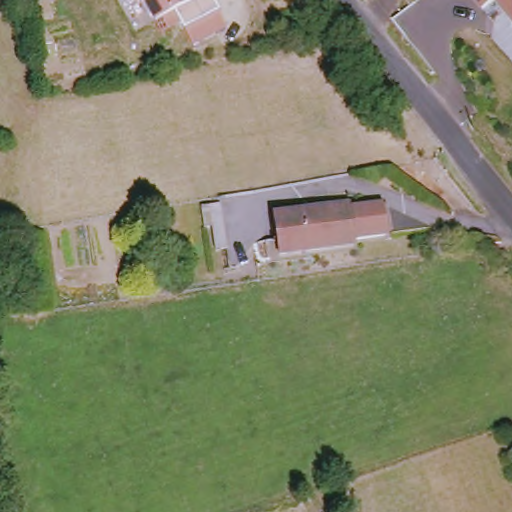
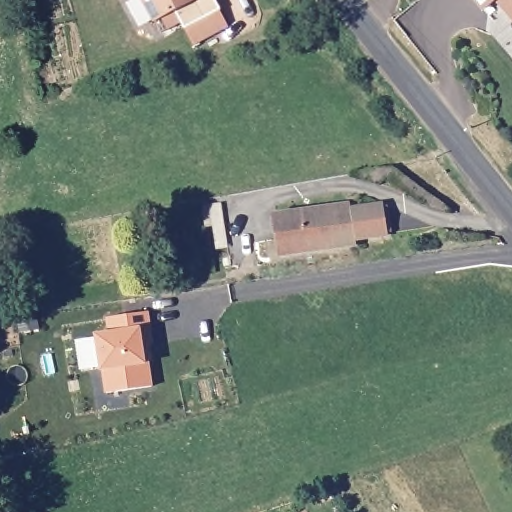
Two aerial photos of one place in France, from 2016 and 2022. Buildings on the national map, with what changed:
unchanged [(179,17),(160,27),(144,0),(145,0),(214,0),(223,16),(190,35),(179,17)]
unchanged [(484,10),(475,0),(496,0),(484,10)]
unchanged [(512,18),(496,0),(512,0),(512,18)]
unchanged [(278,220),(352,210),(352,203),(387,199),(390,239),(357,244),(357,250),(282,259),(278,220)]
unchanged [(227,250),(210,251),(205,207),(222,206),(227,250)]
new [(100,372),(95,335),(110,332),(107,319),(149,311),(155,343),(148,345),(153,387),(105,395),(100,372)]

